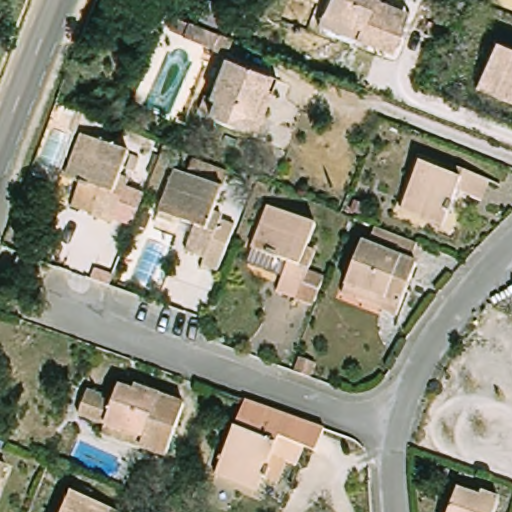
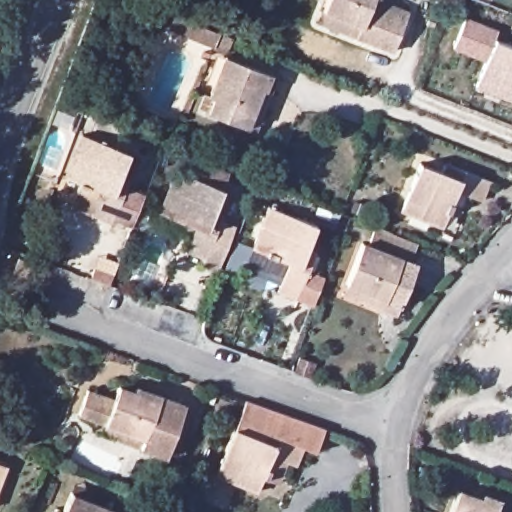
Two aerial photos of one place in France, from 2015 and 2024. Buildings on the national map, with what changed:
unchanged [(328,7),(331,0),(393,0),(394,0),(416,9),(413,16),(399,48),(362,34),(323,19),(328,7)]
new [(489,63),(453,49),(465,16),(502,31),(499,38),(489,63)]
unchanged [(233,42),(226,58),(183,41),(189,26),(233,42)]
unchanged [(481,84),(499,38),(512,43),(512,97),(481,84)]
unchanged [(245,132),(199,114),(206,98),(209,100),(226,62),(276,81),(270,97),(254,135),(245,132)]
unchanged [(73,177),(59,170),(76,129),(124,148),(115,171),(123,173),(105,217),(86,209),(64,200),(73,177)]
unchanged [(443,226),(402,209),(419,162),(442,171),(446,162),(490,180),(481,198),(458,189),(443,226)]
unchanged [(174,169),(221,187),(211,212),(221,215),(205,256),(186,249),(196,222),(159,208),(174,169)]
unchanged [(276,284),(285,262),(251,249),(268,206),(316,224),(307,249),(315,254),(309,271),(299,294),(276,284)]
unchanged [(350,280),(367,238),(404,252),(399,265),(414,272),(411,279),(399,308),(383,302),(347,288),(350,280)]
unchanged [(113,425),(86,416),(96,393),(123,400),(128,388),(143,393),(146,390),(191,406),(171,457),(149,448),(111,433),(113,425)]
unchanged [(318,450),(304,445),(296,462),(276,454),(264,488),(222,471),(246,399),(329,425),(318,450)]
unchanged [(0,500),(0,466),(13,470),(0,500)]
unchanged [(483,498),(486,491),(505,499),(498,512),(452,512),(459,488),(483,498)]
unchanged [(119,512),(68,512),(76,494),(119,512)]

